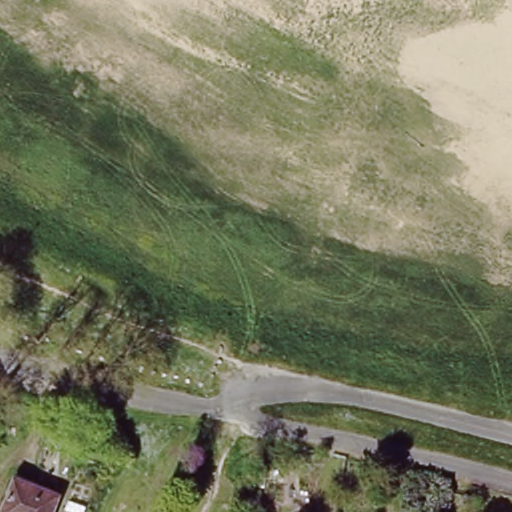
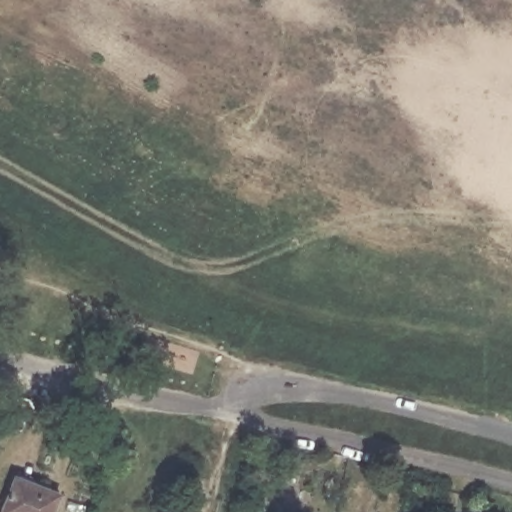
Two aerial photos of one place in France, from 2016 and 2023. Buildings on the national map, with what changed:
unchanged [(54,512),(2,512),(17,476),(61,495),(54,512)]

